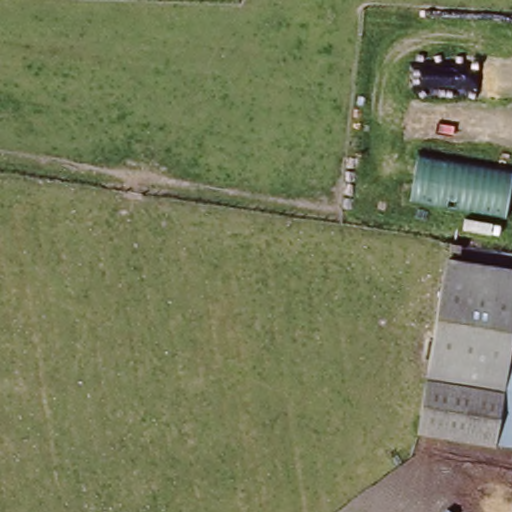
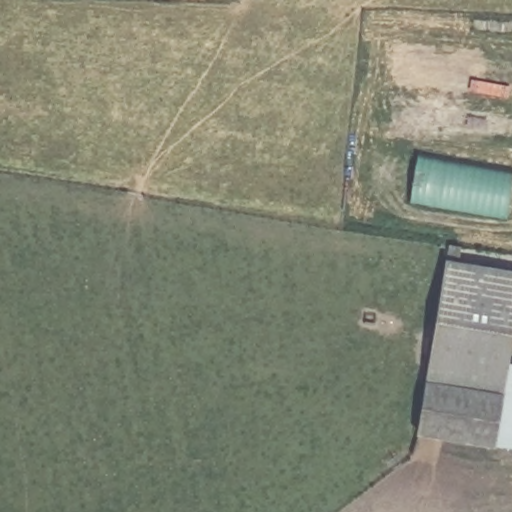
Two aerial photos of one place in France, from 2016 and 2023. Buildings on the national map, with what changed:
unchanged [(417,155),(512,172),(512,178),(505,217),(409,200),(417,155)]
unchanged [(512,265),(512,339),(510,357),(512,358),(512,442),(413,431),(445,255),(512,265)]

